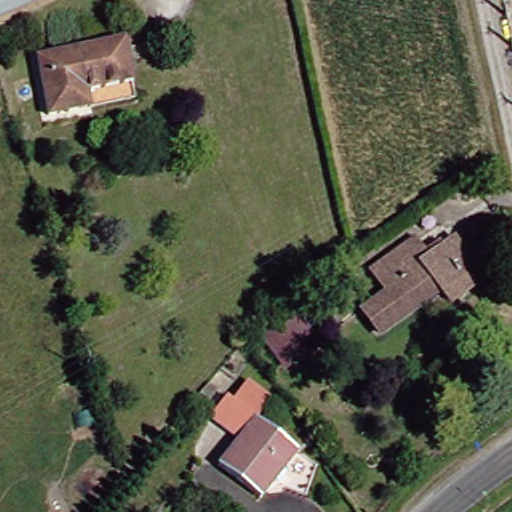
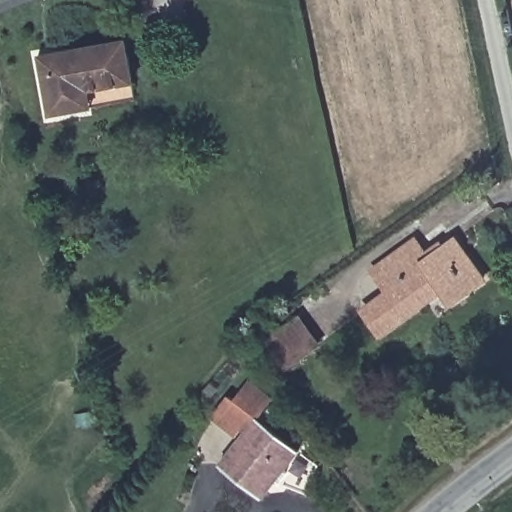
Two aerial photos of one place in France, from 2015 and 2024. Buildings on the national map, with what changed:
unchanged [(67,110),(39,116),(26,56),(118,37),(128,79),(81,89),(85,107),(67,110)]
unchanged [(382,352),(363,326),(390,307),(375,283),(416,253),(432,275),(456,257),(485,297),(456,317),(448,306),(431,317),(382,352)]
unchanged [(313,350),(284,369),(267,343),(261,336),(273,328),(278,335),(295,323),(313,350)]
unchanged [(261,397),(247,415),(293,449),(253,502),(209,470),(238,431),(231,426),(225,434),(211,423),(202,416),(220,395),(225,399),(237,379),(237,380),(261,397)]

